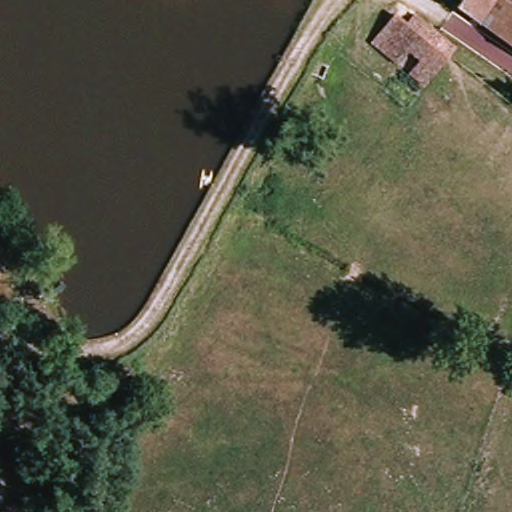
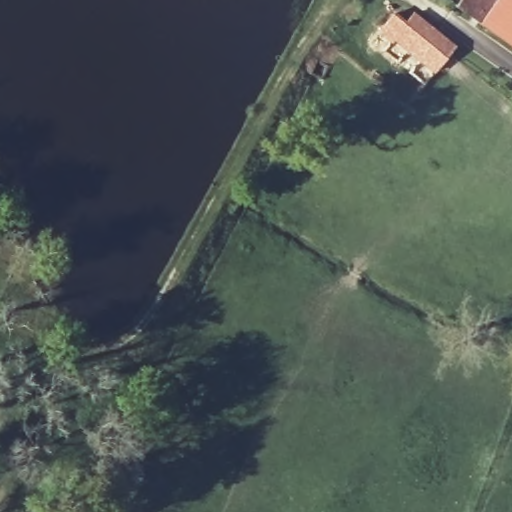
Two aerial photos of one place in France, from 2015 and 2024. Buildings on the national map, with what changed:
unchanged [(456,7),(461,0),(512,0),(512,46),(456,7)]
unchanged [(388,15),(399,24),(407,13),(449,45),(420,84),(367,45),(388,15)]

